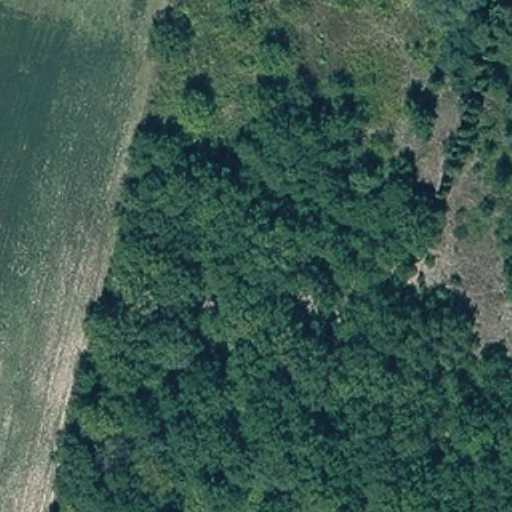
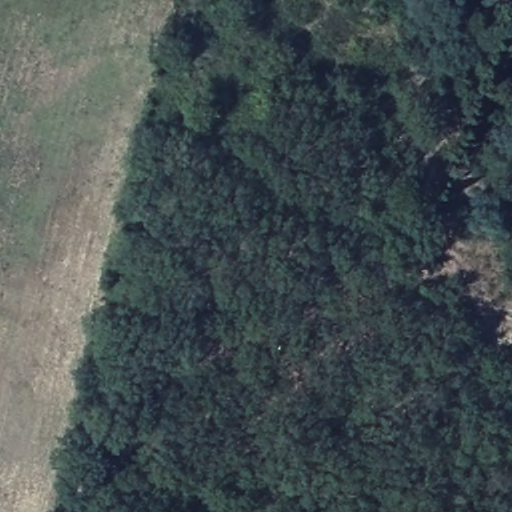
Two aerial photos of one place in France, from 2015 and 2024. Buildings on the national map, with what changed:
[]

